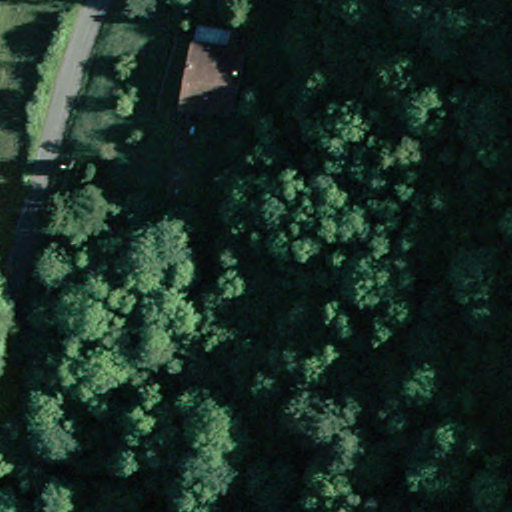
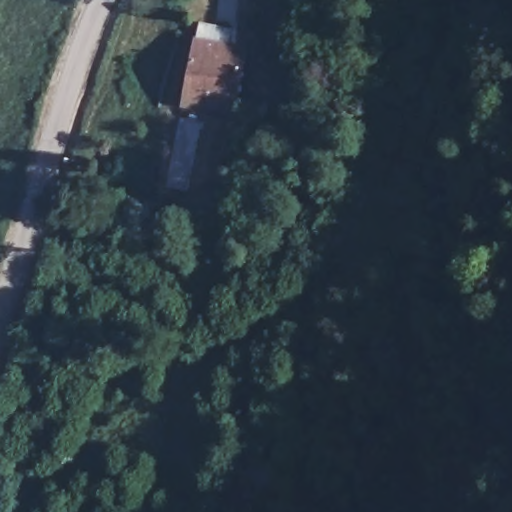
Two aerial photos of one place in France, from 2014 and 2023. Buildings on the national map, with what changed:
unchanged [(227,4),(215,2),(215,0),(227,0),(227,4)]
unchanged [(233,113),(185,107),(193,44),(194,40),(197,24),(231,29),(230,48),(244,50),(245,53),(233,113)]

